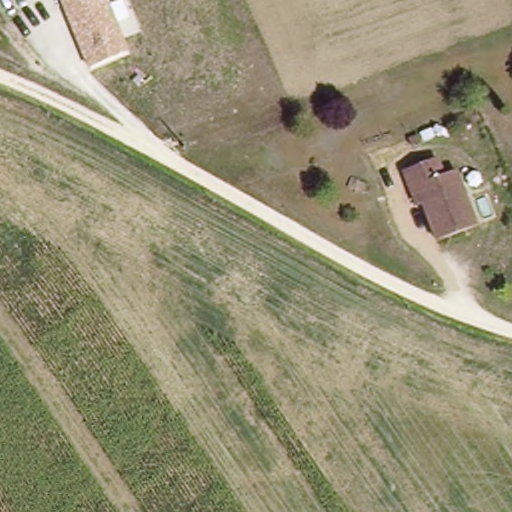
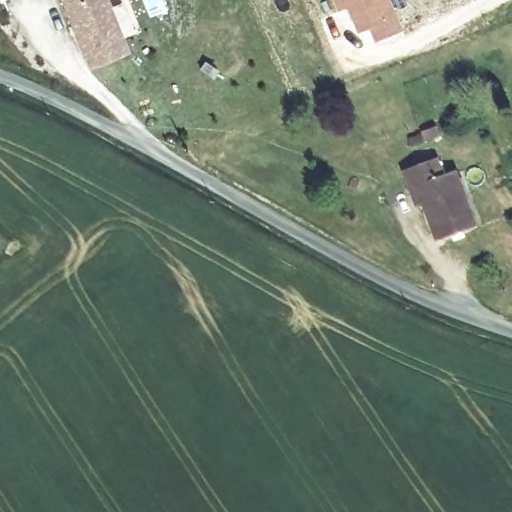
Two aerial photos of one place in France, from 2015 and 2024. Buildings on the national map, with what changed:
unchanged [(134,55),(92,70),(64,0),(113,0),(134,55)]
new [(403,28),(373,41),(367,28),(357,32),(345,7),(336,10),(332,0),(391,0),(403,28)]
unchanged [(435,159),(442,177),(453,173),(477,225),(438,242),(422,202),(416,204),(408,186),(403,172),(435,159)]

